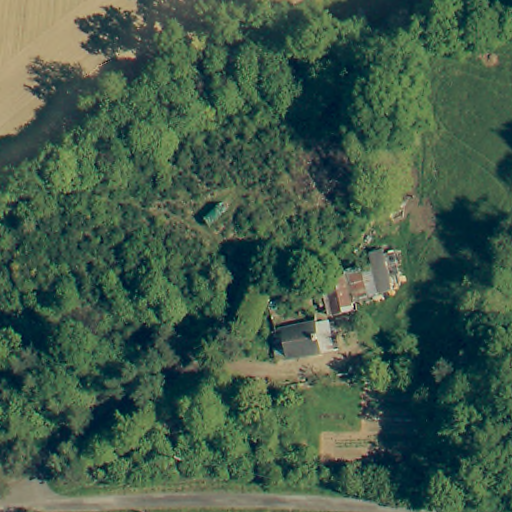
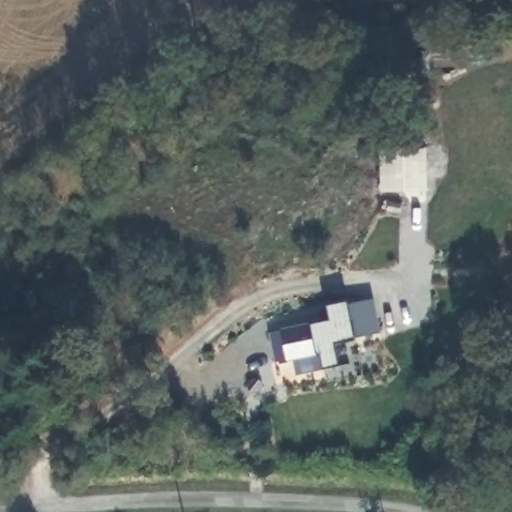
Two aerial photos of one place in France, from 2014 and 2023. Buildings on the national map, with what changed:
demolished [(375,264),(374,254),(387,252),(396,293),(368,298),(363,276),(361,268),(375,264)]
new [(356,341),(335,345),(339,366),(324,370),(319,355),(277,363),(270,331),(315,324),(330,321),(328,307),(349,303),(349,306),(376,298),(383,335),(356,341)]
demolished [(334,355),(277,362),(271,334),(328,327),(334,355)]
unchanged [(265,386),(265,395),(261,398),(256,400),(250,396),(248,391),(249,385),(254,382),(260,382),(265,386)]

